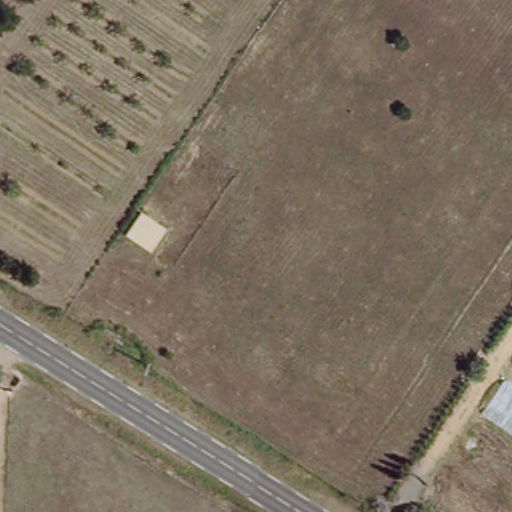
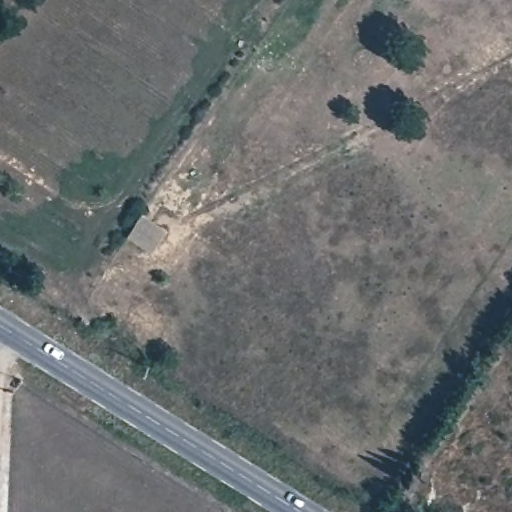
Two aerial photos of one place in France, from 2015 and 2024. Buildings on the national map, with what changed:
demolished [(478,417),(512,365),(512,440),(478,417)]

